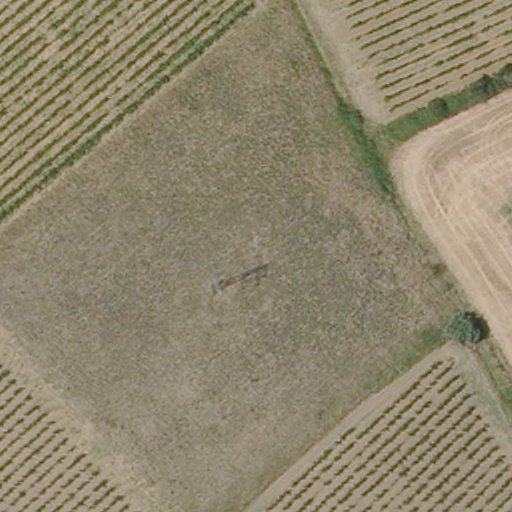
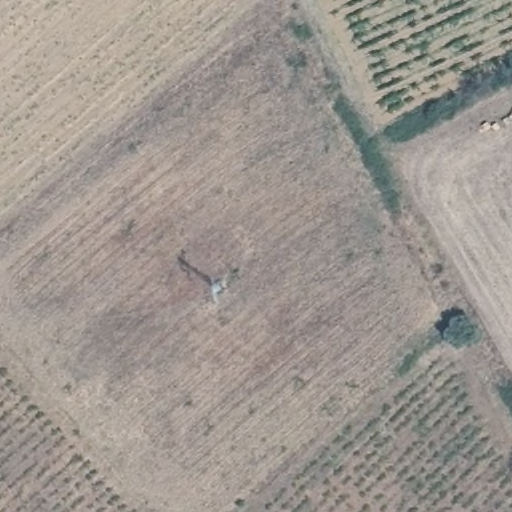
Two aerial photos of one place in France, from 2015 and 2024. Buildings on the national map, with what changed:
[]

